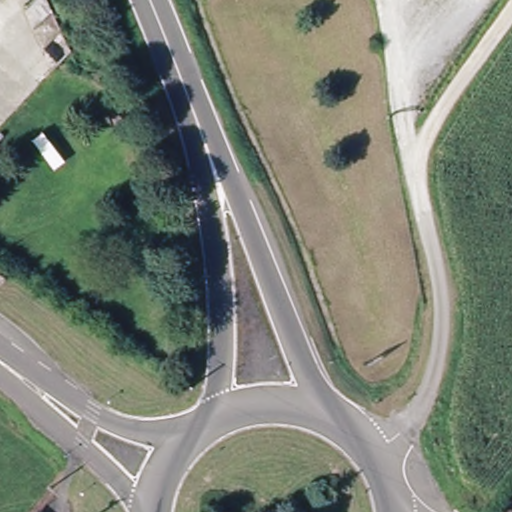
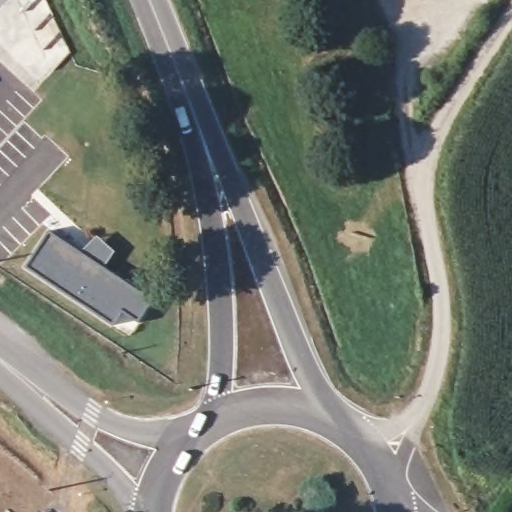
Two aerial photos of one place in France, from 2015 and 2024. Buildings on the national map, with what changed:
new [(50,228),(82,249),(97,233),(117,250),(106,266),(154,300),(139,322),(134,319),(132,322),(116,325),(115,326),(74,301),(24,267),(50,228)]

